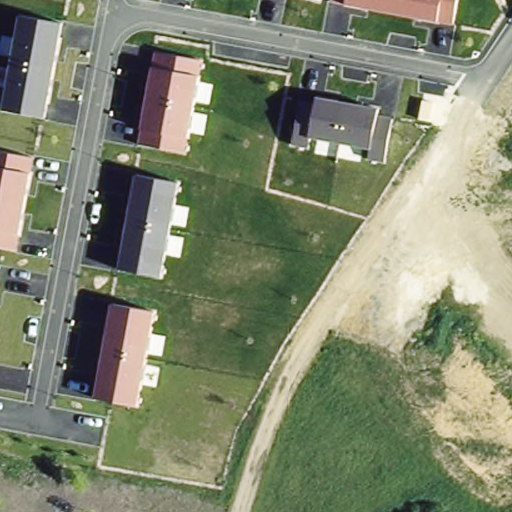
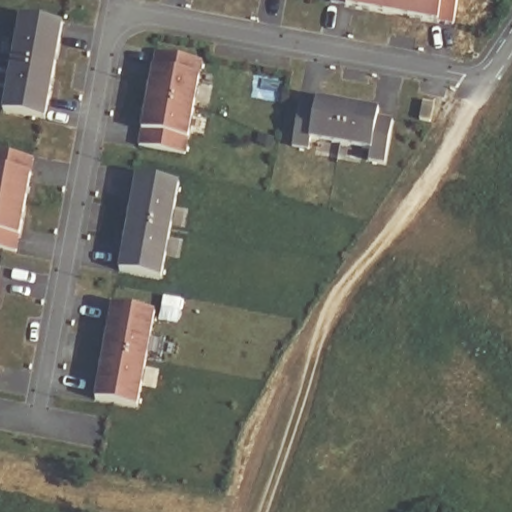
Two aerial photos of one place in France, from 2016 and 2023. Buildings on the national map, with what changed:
unchanged [(330,2),(330,0),(458,0),(454,25),(330,2)]
unchanged [(45,119),(2,110),(20,14),(64,22),(45,119)]
unchanged [(137,146),(155,50),(203,59),(186,155),(137,146)]
unchanged [(314,102),(315,95),(379,107),(379,115),(392,117),(385,161),(367,158),(369,148),(310,138),(309,148),(290,144),(297,100),(314,102)]
unchanged [(0,248),(0,149),(35,156),(17,252),(0,248)]
unchanged [(120,269),(136,174),(180,182),(162,278),(120,269)]
unchanged [(93,398),(111,303),(155,311),(138,407),(93,398)]

